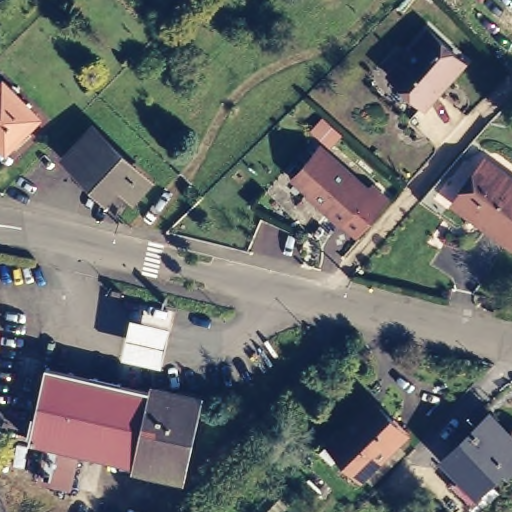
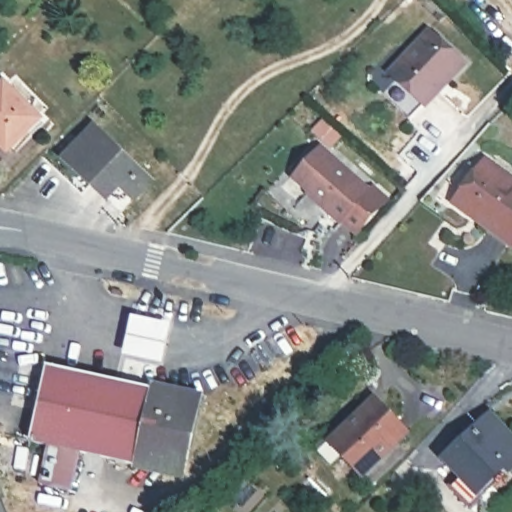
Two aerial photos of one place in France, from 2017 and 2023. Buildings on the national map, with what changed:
unchanged [(427,29),(462,61),(448,76),(446,75),(422,102),(388,72),(427,29)]
unchanged [(0,83),(34,118),(5,146),(0,141),(0,83)]
unchanged [(92,116),(146,167),(132,184),(118,171),(105,182),(65,144),(92,116)]
unchanged [(340,225),(327,213),(328,211),(321,205),(317,205),(306,195),(306,192),(292,180),(318,150),(368,193),(340,225)]
unchanged [(512,176),(512,233),(510,235),(479,213),(482,208),(475,202),(471,207),(453,194),(483,155),(512,176)]
unchanged [(133,317),(170,324),(155,394),(120,387),(133,317)]
unchanged [(155,394),(201,405),(184,477),(84,454),(76,490),(43,483),(51,447),(37,443),(52,372),(120,387),(155,394)]
unchanged [(379,393),(411,425),(369,467),(336,435),(379,393)]
unchanged [(512,434),(512,462),(510,464),(505,459),(479,486),(443,451),(485,408),(512,434)]

